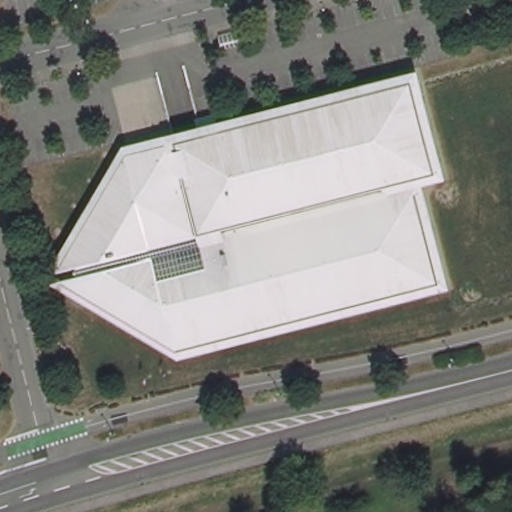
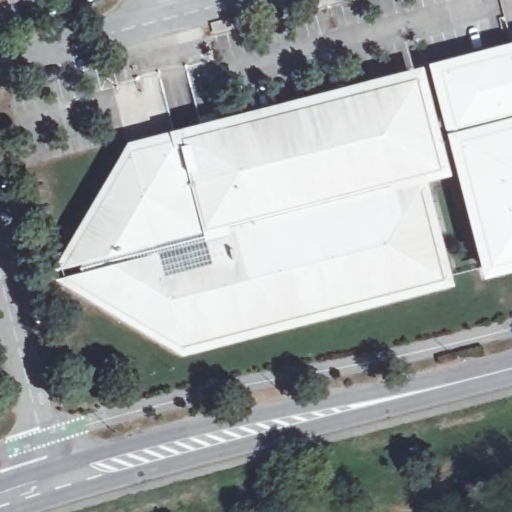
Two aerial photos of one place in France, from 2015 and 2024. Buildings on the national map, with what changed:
new [(426,66),(512,44),(512,118),(445,136),(426,66)]
unchanged [(86,274),(80,270),(83,263),(60,270),(77,239),(125,161),(132,159),(130,151),(180,138),(419,78),(442,173),(427,178),(429,181),(424,190),(447,283),(182,351),(92,298),(63,280),(86,274)]
new [(445,136),(512,118),(512,274),(482,282),(445,136)]

